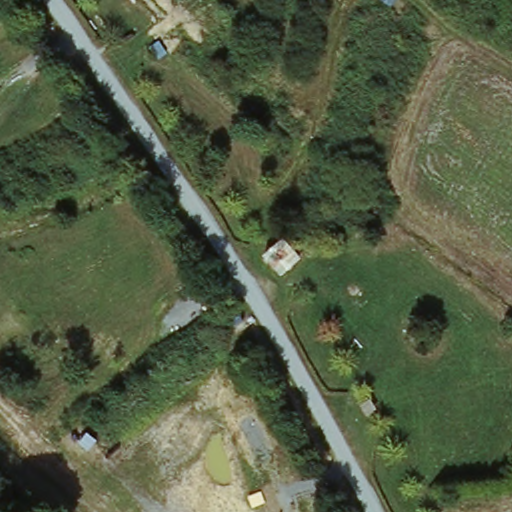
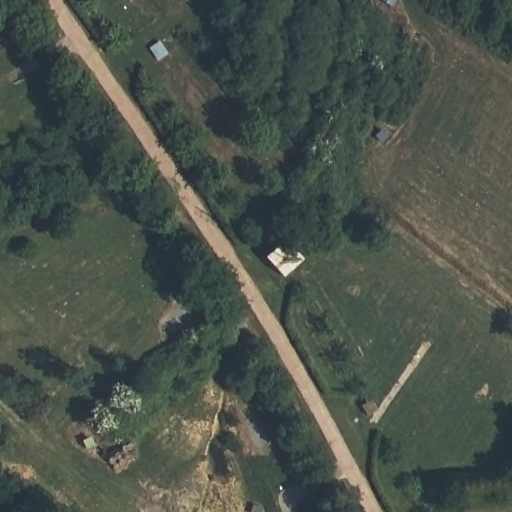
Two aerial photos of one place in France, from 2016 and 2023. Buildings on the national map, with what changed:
unchanged [(265,260),(288,240),(305,261),(281,278),(265,260)]

